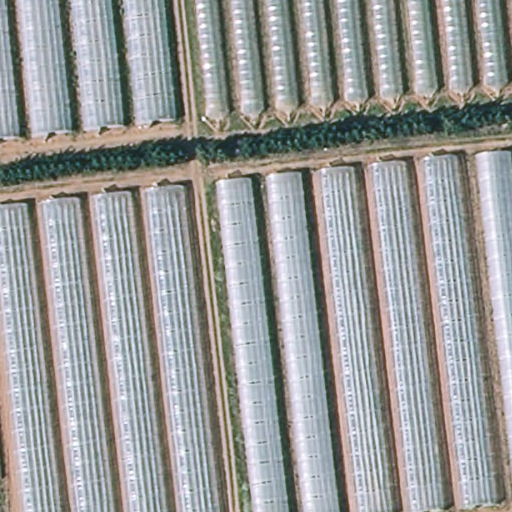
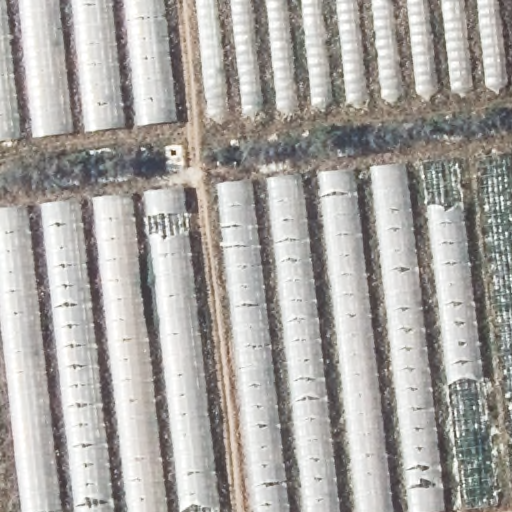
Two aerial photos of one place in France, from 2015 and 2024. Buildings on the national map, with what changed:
unchanged [(180,127),(0,145),(0,0),(167,0),(180,127)]
unchanged [(512,82),(209,116),(197,0),(512,0),(512,82)]
unchanged [(512,503),(427,512),(248,512),(212,184),(512,151),(512,503)]
unchanged [(179,187),(211,512),(13,512),(0,369),(0,208),(179,187)]

